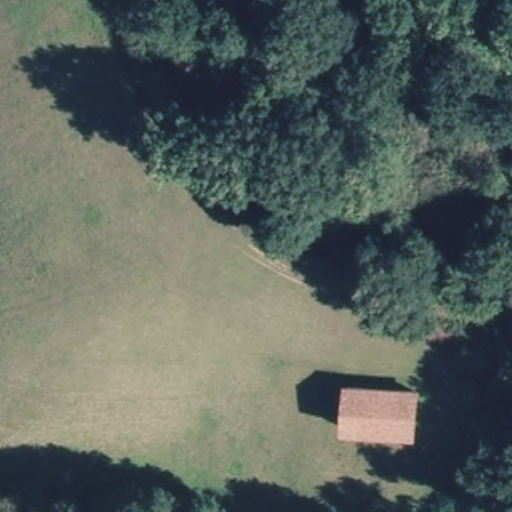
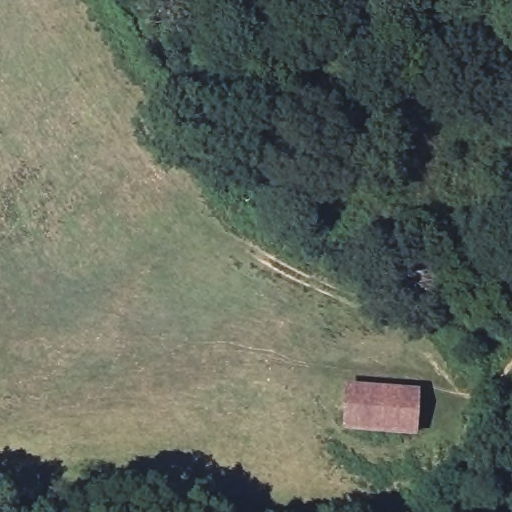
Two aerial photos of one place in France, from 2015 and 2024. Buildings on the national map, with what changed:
unchanged [(345,437),(347,396),(412,397),(410,438),(345,437)]

